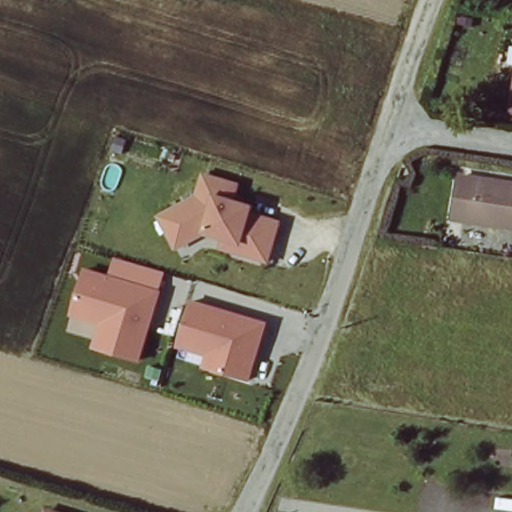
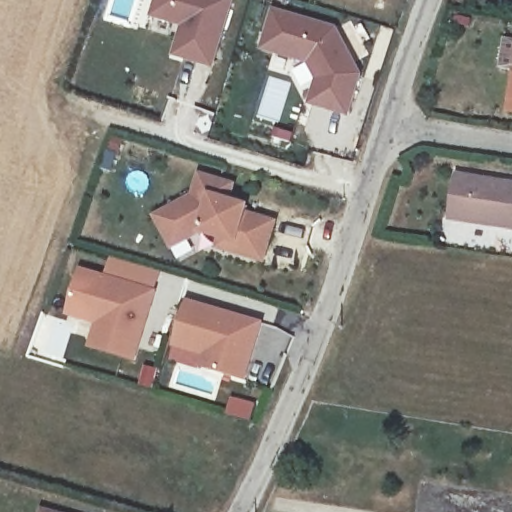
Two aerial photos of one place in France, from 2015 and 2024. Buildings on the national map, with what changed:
new [(172,56),(181,27),(150,17),(155,0),(235,0),(215,67),(172,56)]
new [(308,104),(316,78),(307,63),(262,50),(273,9),(337,27),(363,76),(349,116),(308,104)]
unchanged [(259,261),(210,246),(213,240),(199,236),(169,251),(148,216),(191,198),(200,168),(237,180),(228,201),(250,204),(246,216),(274,223),(259,261)]
unchanged [(456,218),(461,175),(512,180),(512,226),(456,218)]
unchanged [(137,358),(92,345),(97,325),(68,315),(81,268),(159,289),(137,358)]
unchanged [(247,379),(201,366),(204,355),(174,346),(187,302),(262,322),(247,379)]

